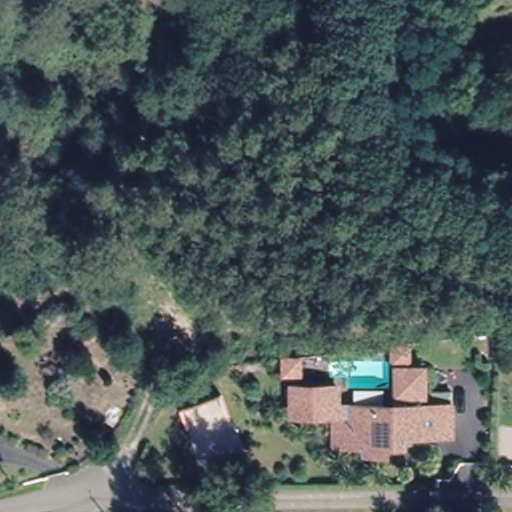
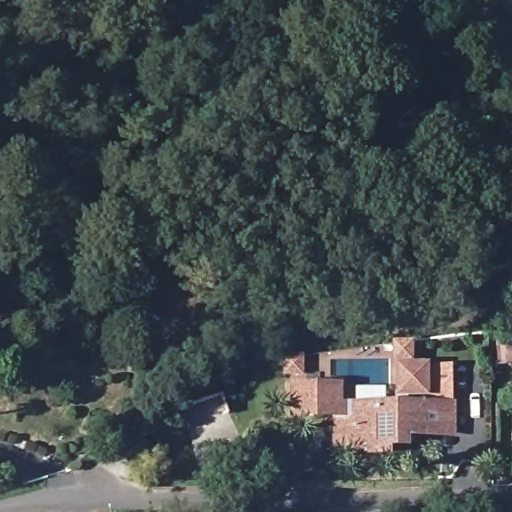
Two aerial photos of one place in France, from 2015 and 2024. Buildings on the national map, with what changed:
unchanged [(405,350),(405,361),(393,361),(393,350),(405,350)]
unchanged [(298,360),(298,375),(283,375),(283,360),(298,360)]
unchanged [(405,435),(405,445),(388,445),(388,450),(384,454),(369,454),(365,450),(365,445),(351,445),(350,445),(348,445),(347,444),(346,443),(344,442),(343,441),(341,440),(340,438),(339,436),(337,433),(337,432),(337,430),(336,415),(295,416),(295,388),(338,388),(338,408),(399,407),(398,367),(426,367),(426,395),(406,395),(406,407),(451,406),(451,434),(405,435)]

